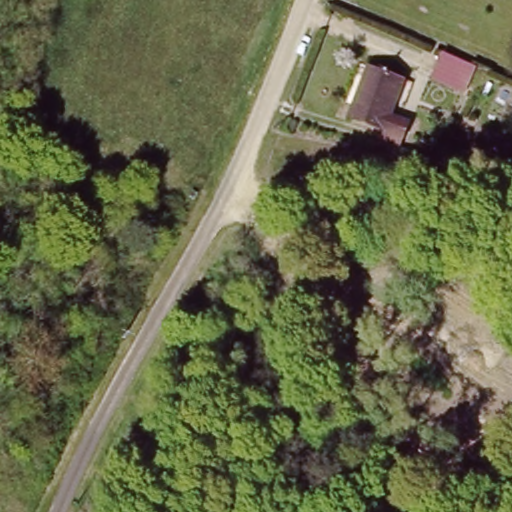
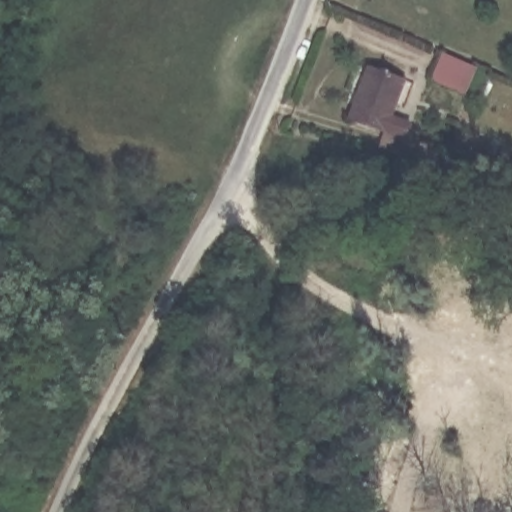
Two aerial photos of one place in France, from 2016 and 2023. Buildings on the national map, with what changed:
unchanged [(475,66),(463,93),(432,79),(442,52),(475,66)]
unchanged [(377,141),(383,126),(350,113),(369,61),(401,75),(388,111),(407,119),(402,133),(396,149),(377,141)]

